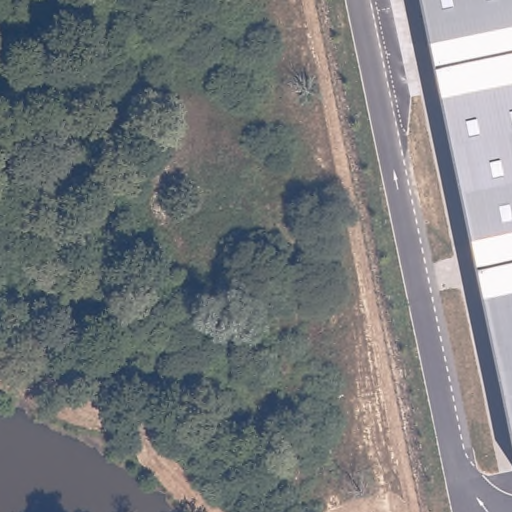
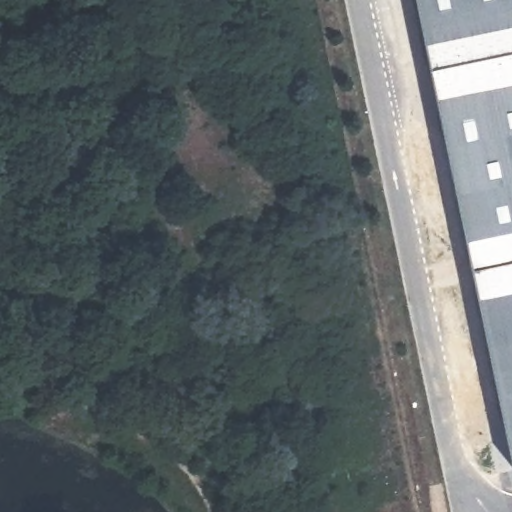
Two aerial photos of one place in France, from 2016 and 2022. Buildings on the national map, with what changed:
unchanged [(418,0),(512,0),(512,449),(418,0)]

